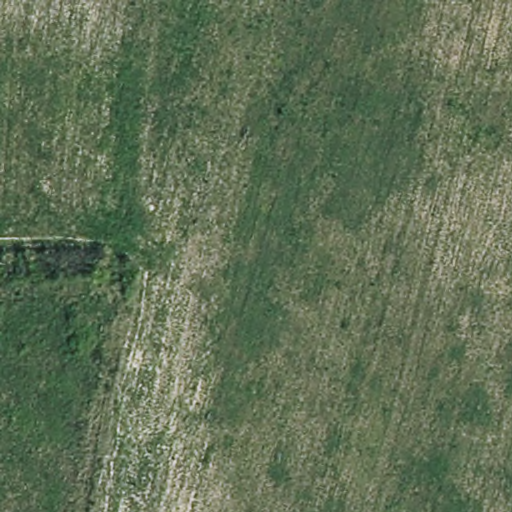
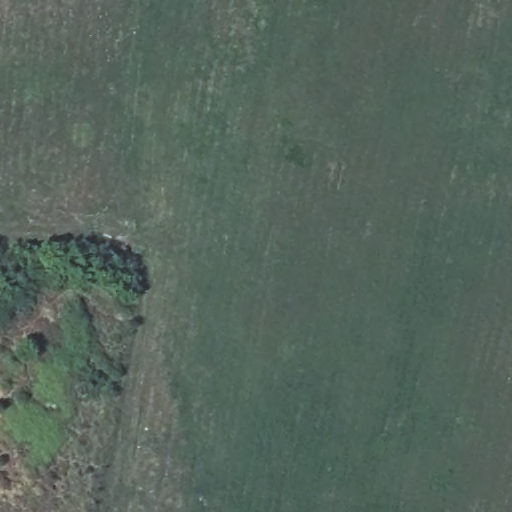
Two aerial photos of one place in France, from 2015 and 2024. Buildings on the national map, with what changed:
[]

